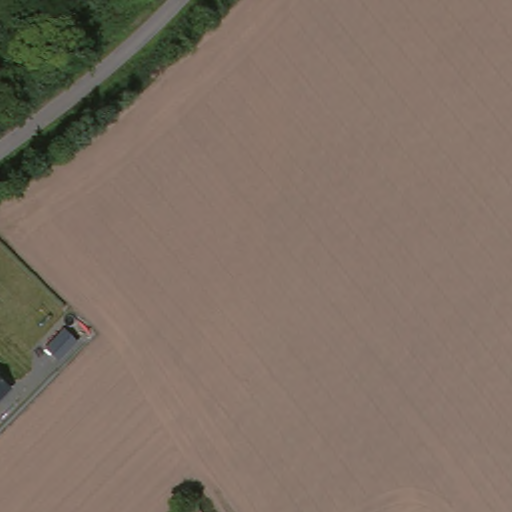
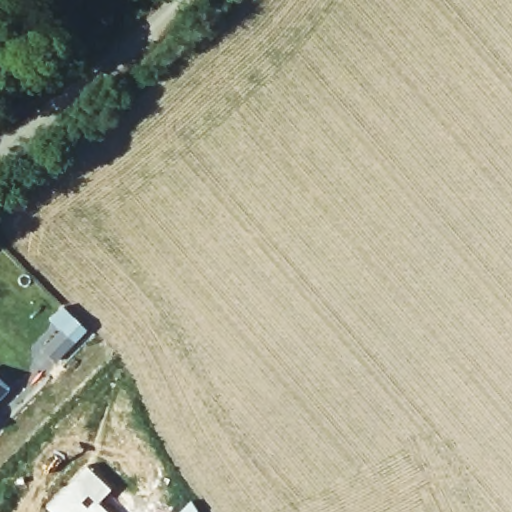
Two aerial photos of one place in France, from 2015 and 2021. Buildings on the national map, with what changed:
unchanged [(0,399),(0,391),(4,394),(0,399)]
new [(109,489),(96,502),(106,512),(48,512),(44,508),(85,466),(109,489)]

